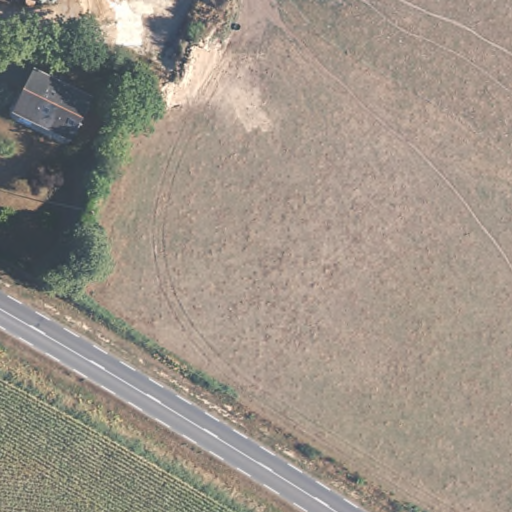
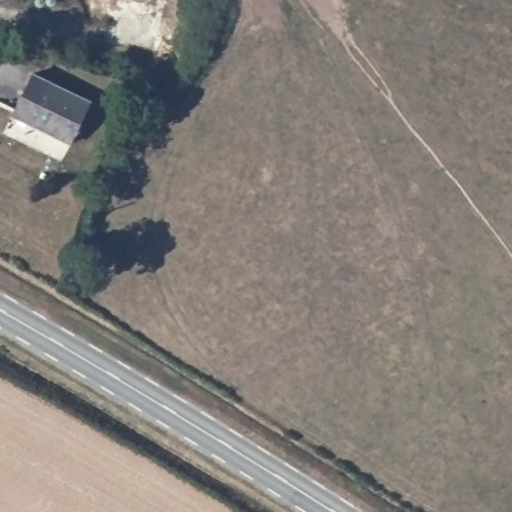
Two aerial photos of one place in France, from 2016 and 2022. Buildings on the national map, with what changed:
unchanged [(91,102),(70,142),(14,112),(34,72),(91,102)]

